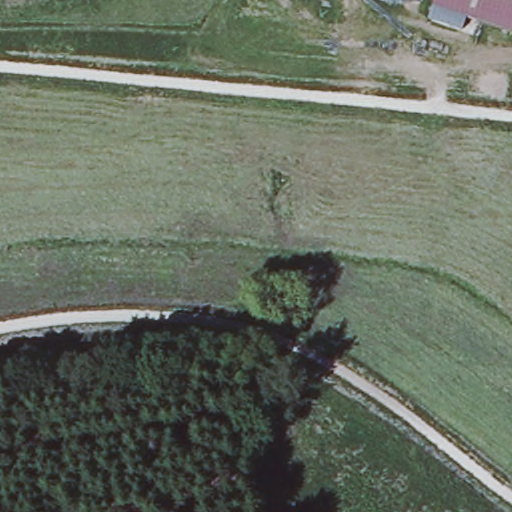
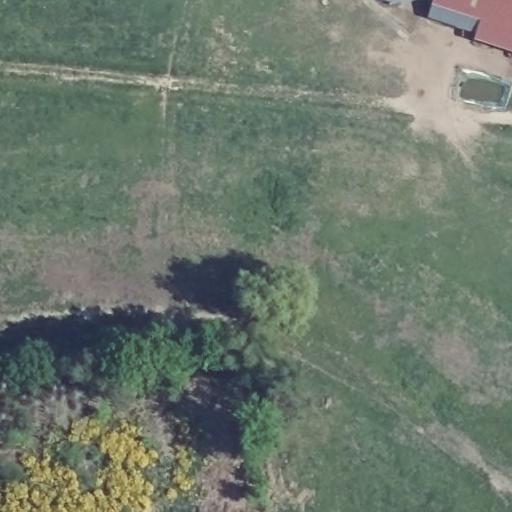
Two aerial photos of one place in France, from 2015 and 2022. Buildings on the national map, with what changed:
unchanged [(433,0),(512,0),(512,30),(432,4),(433,0)]

